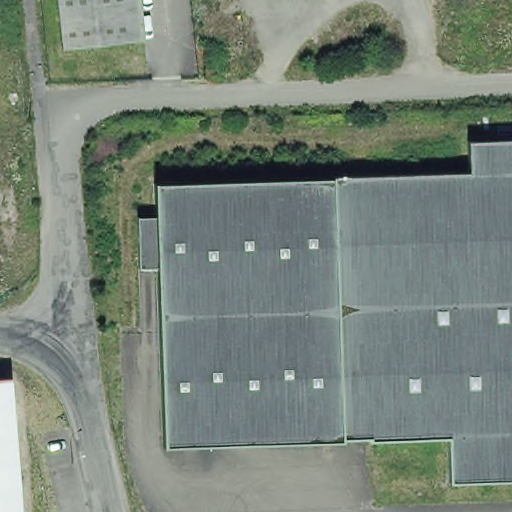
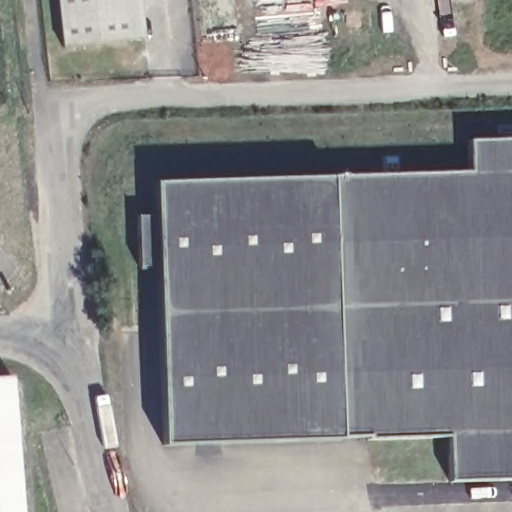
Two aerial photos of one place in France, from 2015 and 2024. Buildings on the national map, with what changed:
unchanged [(135,38),(68,46),(62,0),(131,0),(135,38)]
unchanged [(448,434),(365,437),(365,434),(342,435),(342,437),(162,443),(156,263),(138,264),(136,213),(154,213),(153,179),(469,168),(467,136),(512,134),(512,476),(450,479),(448,434)]
unchanged [(13,376),(22,512),(0,512),(0,376),(13,376)]

